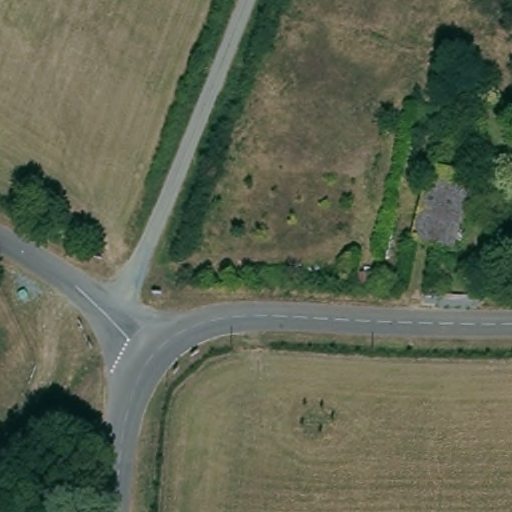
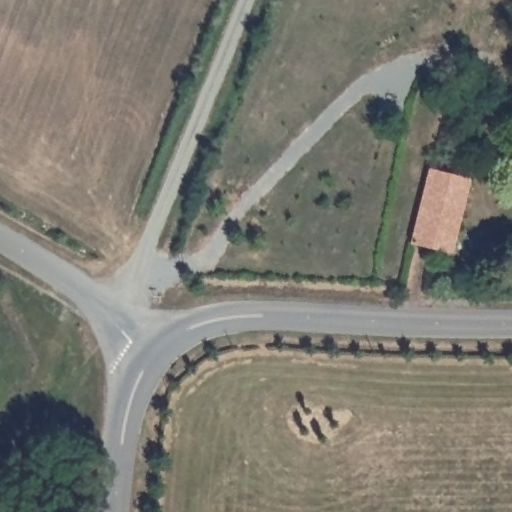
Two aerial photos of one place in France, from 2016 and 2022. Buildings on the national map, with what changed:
unchanged [(462,182),(445,252),(407,243),(425,172),(462,182)]

